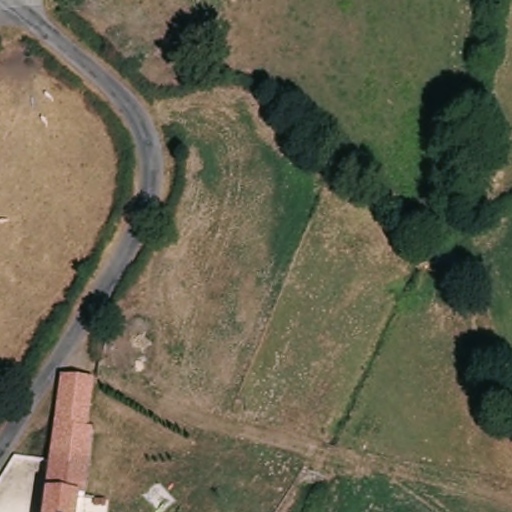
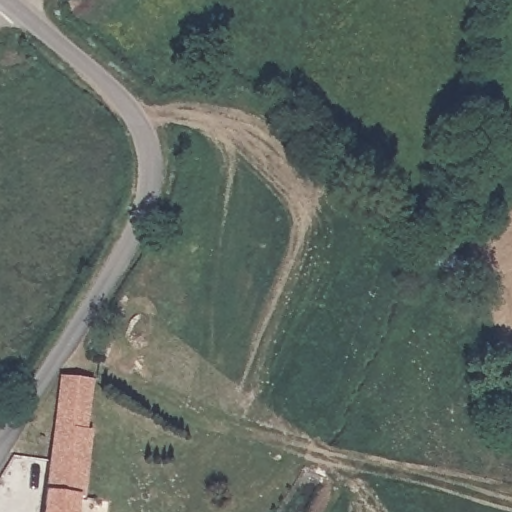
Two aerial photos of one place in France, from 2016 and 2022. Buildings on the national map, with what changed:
unchanged [(92,376),(88,421),(56,419),(60,374),(92,376)]
unchanged [(92,430),(91,454),(52,451),(56,419),(88,421),(94,421),(92,430)]
unchanged [(84,496),(82,512),(47,512),(52,451),(91,454),(87,496),(84,496)]

